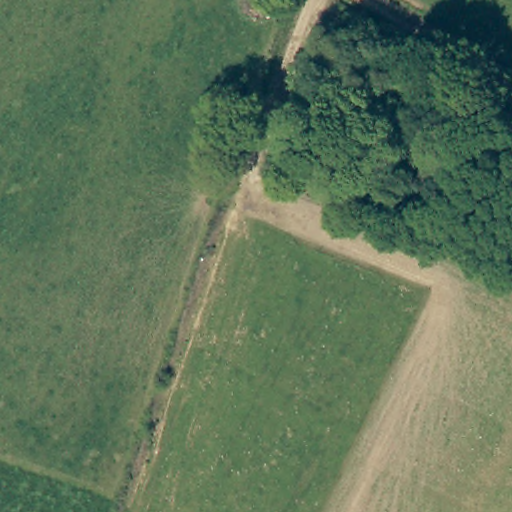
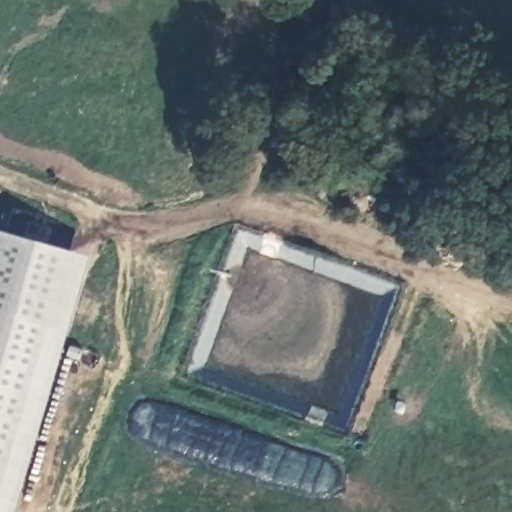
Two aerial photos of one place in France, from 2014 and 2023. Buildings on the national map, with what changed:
new [(7,236),(90,263),(18,512),(0,512),(0,260),(7,236)]

